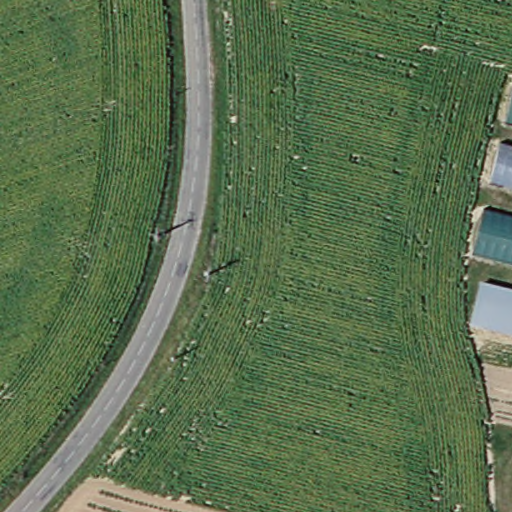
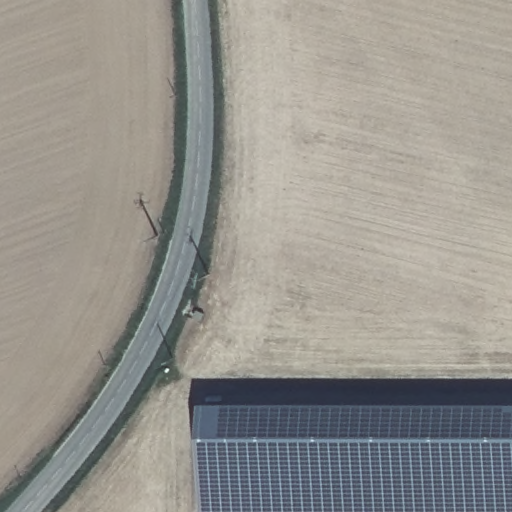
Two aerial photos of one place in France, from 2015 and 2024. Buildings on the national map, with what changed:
demolished [(505,120),(512,95),(512,122),(505,120)]
demolished [(512,144),(512,186),(497,182),(505,142),(512,144)]
demolished [(472,251),(483,207),(512,214),(512,261),(472,251)]
demolished [(485,280),(512,288),(512,331),(473,321),(485,280)]
new [(512,401),(512,510),(373,512),(199,512),(197,406),(512,401)]

